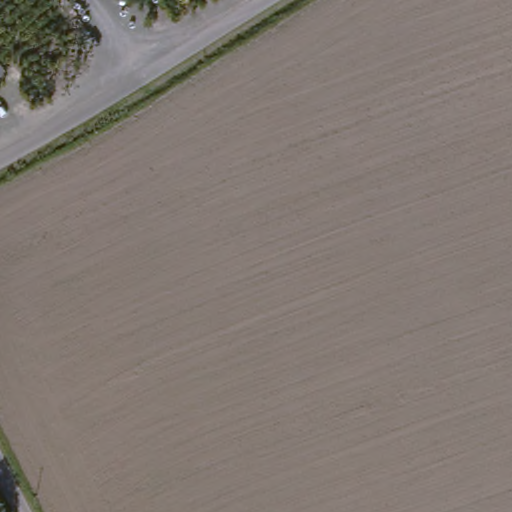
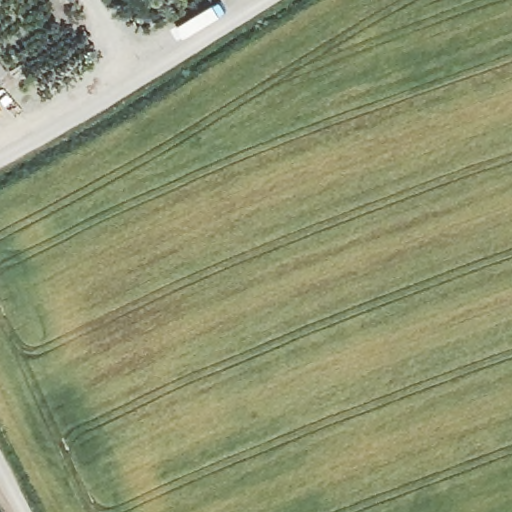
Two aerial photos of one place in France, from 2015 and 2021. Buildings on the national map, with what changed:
unchanged [(0,83),(0,81),(1,82),(0,83)]

